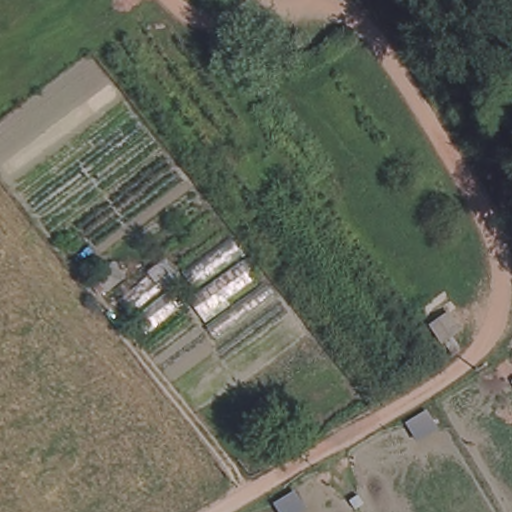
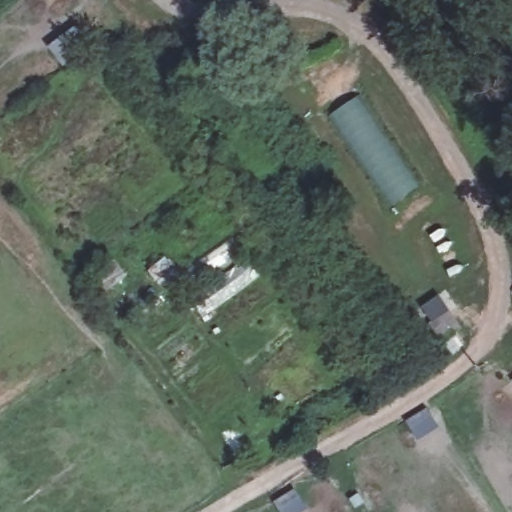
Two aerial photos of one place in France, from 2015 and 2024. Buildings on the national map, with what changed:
new [(330,117),(361,96),(420,186),(390,206),(330,117)]
unchanged [(442,340),(432,324),(447,313),(458,328),(442,340)]

